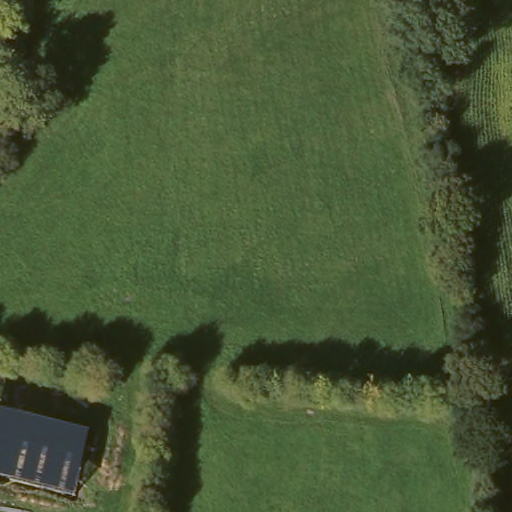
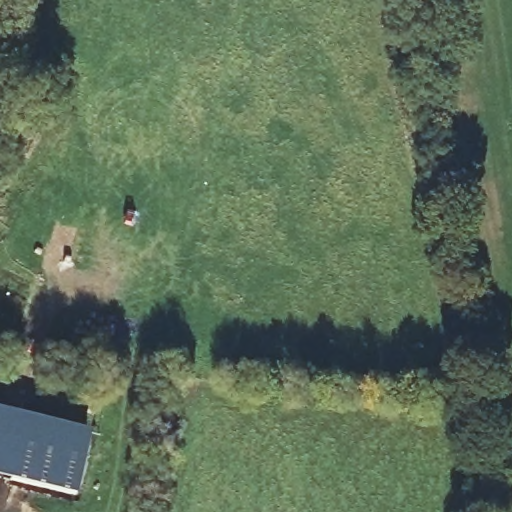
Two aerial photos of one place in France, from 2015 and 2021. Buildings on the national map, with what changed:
unchanged [(76,497),(0,479),(0,410),(91,430),(76,497)]

